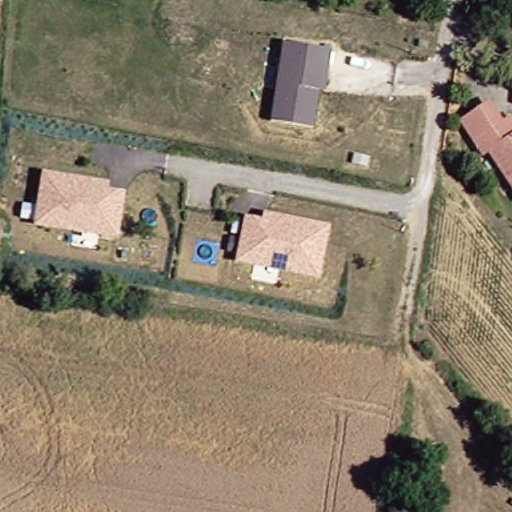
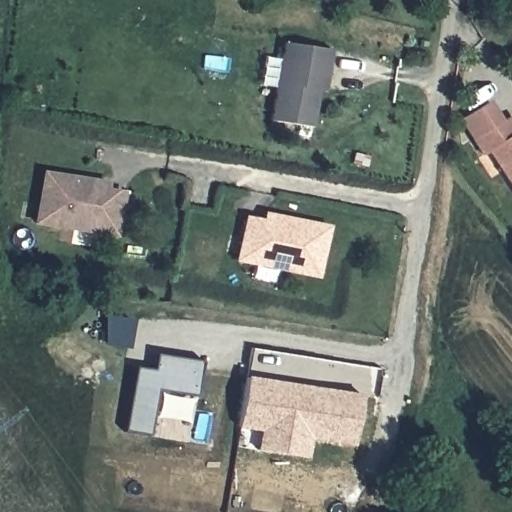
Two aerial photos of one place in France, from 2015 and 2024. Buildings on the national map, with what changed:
unchanged [(429,41),(436,42),(434,49),(428,48),(429,41)]
unchanged [(334,51),(332,68),(328,92),(322,91),(316,128),(274,121),(286,43),(334,51)]
unchanged [(512,128),(512,190),(486,152),(479,156),(468,140),(455,121),(480,104),(493,123),(503,115),(512,128)]
unchanged [(116,235),(36,220),(45,171),(79,177),(108,183),(106,190),(124,194),(116,235)]
unchanged [(267,222),(268,215),(297,222),(330,230),(319,278),(239,260),(249,218),(267,222)]
new [(199,394),(159,389),(151,435),(126,432),(136,369),(156,371),(157,355),(202,361),(199,394)]
new [(356,447),(312,440),(309,458),(257,451),(259,431),(239,429),(247,377),(361,396),(356,447)]

